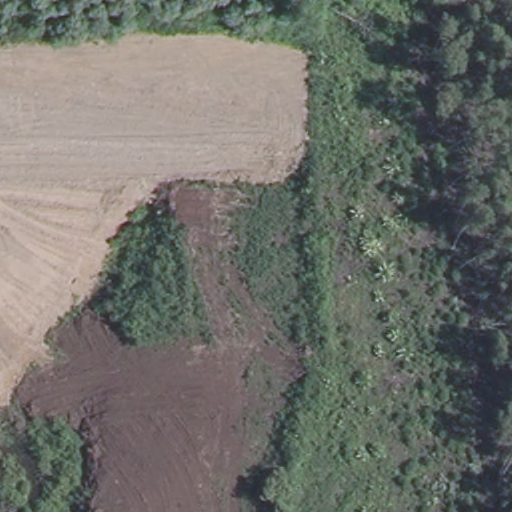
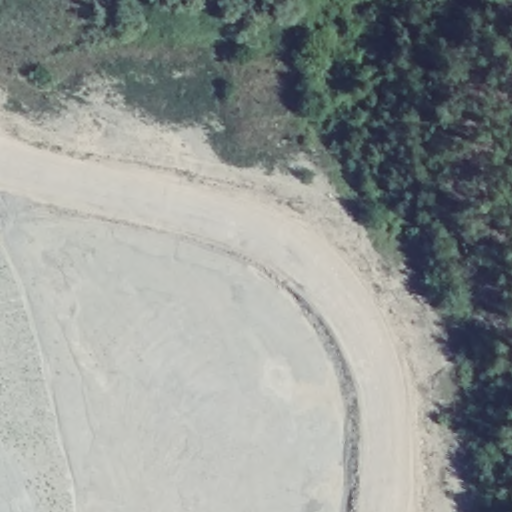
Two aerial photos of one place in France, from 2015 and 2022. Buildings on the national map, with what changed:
[]

